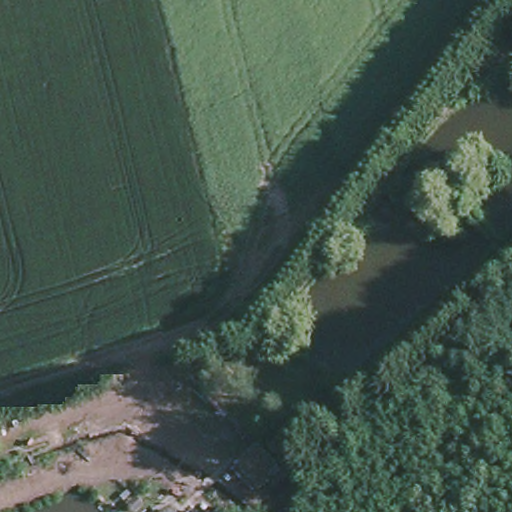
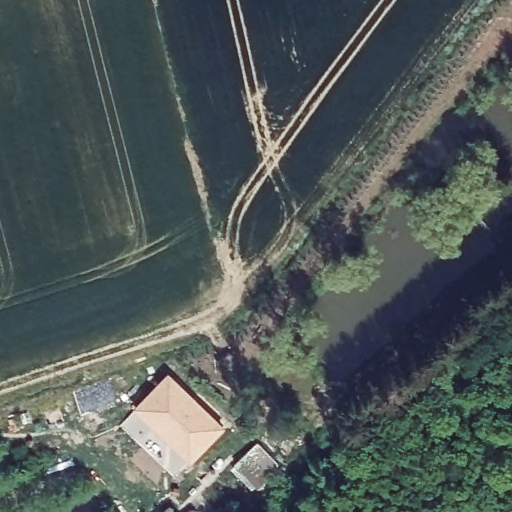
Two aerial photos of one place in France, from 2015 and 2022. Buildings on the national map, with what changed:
new [(225,428),(190,464),(132,408),(167,373),(225,428)]
new [(280,464),(252,490),(230,468),(257,442),(280,464)]
new [(220,505),(226,512),(212,512),(220,505)]
new [(175,512),(163,512),(170,506),(175,512)]
new [(196,510),(198,512),(194,512),(196,510)]

